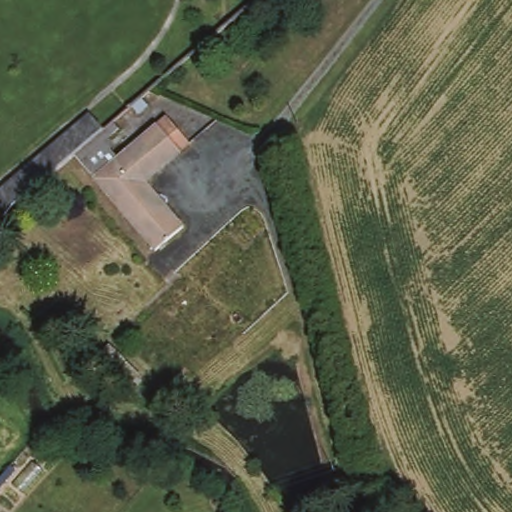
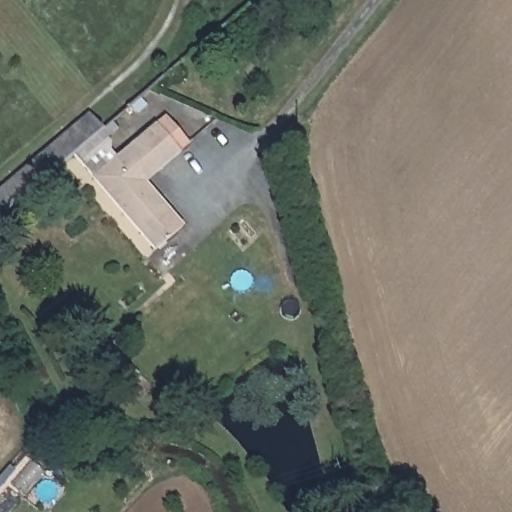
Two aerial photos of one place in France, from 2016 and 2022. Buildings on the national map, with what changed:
unchanged [(75,156),(113,126),(119,135),(81,165),(74,157),(14,214),(13,212),(11,210),(0,199),(0,198),(92,114),(106,128),(75,156)]
unchanged [(165,120),(189,149),(143,184),(183,230),(154,255),(94,180),(165,120)]
unchanged [(101,355),(120,372),(109,385),(89,367),(101,355)]

